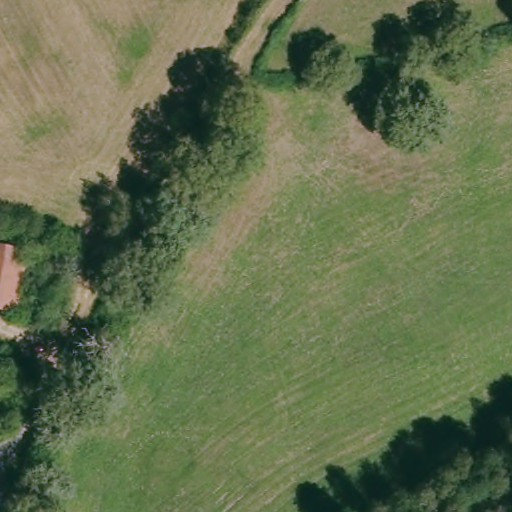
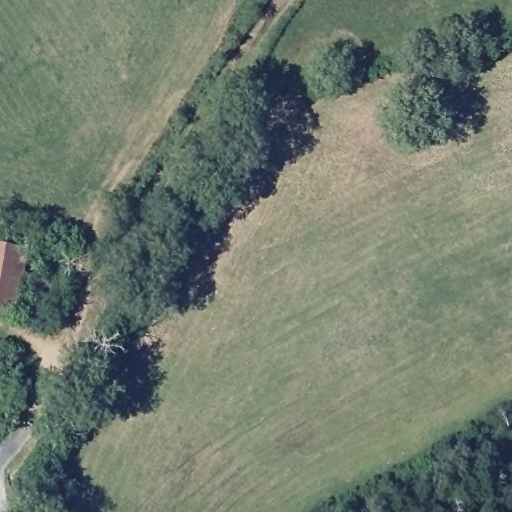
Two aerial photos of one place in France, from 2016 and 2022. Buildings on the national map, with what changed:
unchanged [(13,312),(0,309),(0,244),(24,248),(13,312)]

